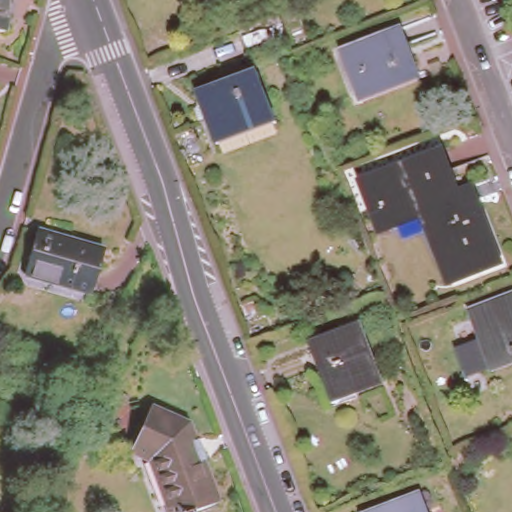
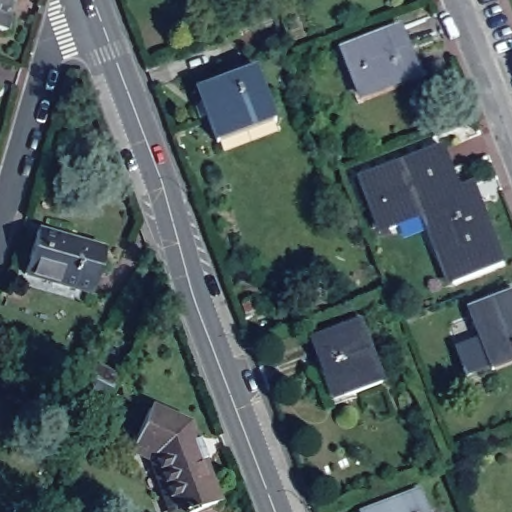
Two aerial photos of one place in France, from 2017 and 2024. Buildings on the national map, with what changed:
unchanged [(0,23),(0,0),(5,0),(3,23),(0,23)]
unchanged [(398,27),(415,71),(356,92),(340,49),(398,27)]
unchanged [(259,64),(278,116),(220,137),(201,86),(259,64)]
unchanged [(385,227),(380,215),(370,218),(355,177),(438,145),(455,187),(468,182),(499,261),(447,280),(421,214),(385,227)]
unchanged [(18,271),(31,229),(98,247),(86,291),(18,271)]
unchanged [(512,293),(512,362),(494,368),(471,307),(512,293)]
unchanged [(353,322),(375,380),(330,397),(309,338),(353,322)]
unchanged [(104,403),(77,390),(90,363),(118,377),(104,403)]
unchanged [(146,456),(127,446),(143,407),(180,423),(186,438),(192,437),(198,457),(193,458),(209,500),(186,509),(187,512),(168,512),(146,456)]
unchanged [(418,486),(427,512),(361,512),(360,507),(418,486)]

